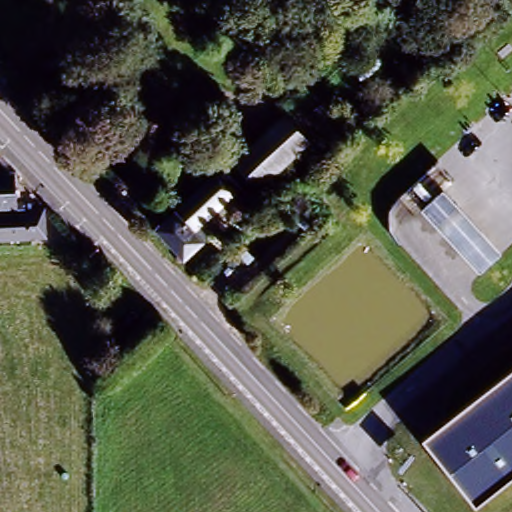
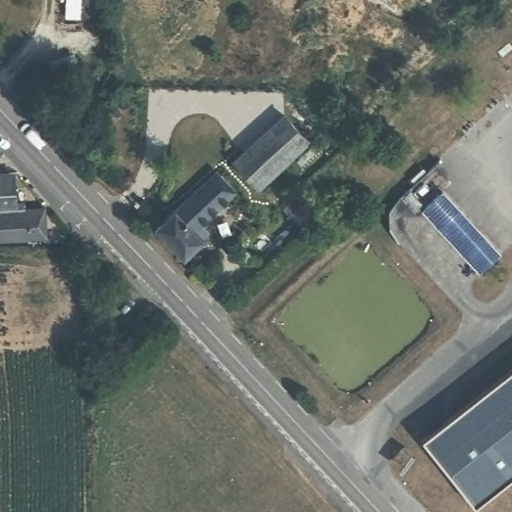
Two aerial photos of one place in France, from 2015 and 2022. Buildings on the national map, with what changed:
unchanged [(281,116),(303,140),(256,184),(232,158),(281,116)]
unchanged [(15,169),(18,205),(45,204),(46,236),(0,238),(0,169),(15,169)]
unchanged [(219,188),(228,197),(257,226),(247,235),(220,205),(195,227),(202,238),(180,259),(149,228),(208,177),(219,188)]
unchanged [(478,273),(421,210),(445,189),(501,252),(478,273)]
unchanged [(422,440),(512,370),(512,478),(474,507),(422,440)]

